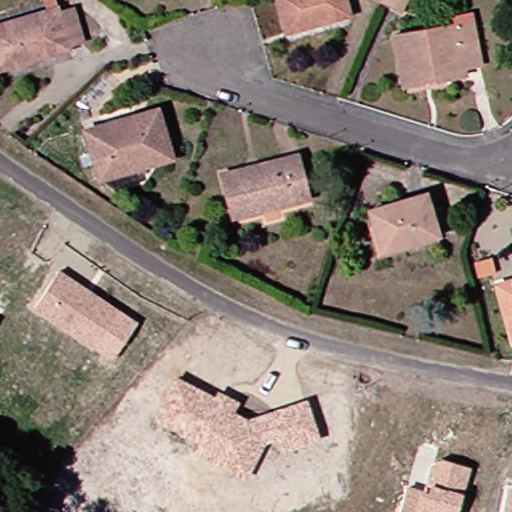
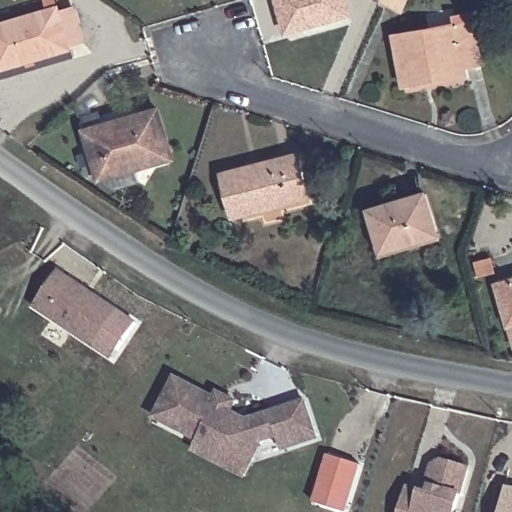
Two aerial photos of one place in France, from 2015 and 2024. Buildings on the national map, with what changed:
unchanged [(282,32),(273,0),(340,0),(344,14),(282,32)]
unchanged [(381,0),(398,0),(395,6),(381,0)]
unchanged [(0,64),(0,19),(51,6),(52,10),(68,6),(77,39),(61,43),(62,47),(0,64)]
unchanged [(417,80),(398,82),(391,30),(452,20),(452,14),(469,10),(476,60),(459,64),(461,72),(417,80)]
unchanged [(147,107),(162,154),(91,176),(77,129),(147,107)]
unchanged [(288,150),(302,194),(226,215),(214,171),(288,150)]
unchanged [(376,250),(374,242),(363,203),(417,189),(429,230),(431,235),(376,250)]
unchanged [(114,356),(99,346),(39,305),(62,270),(122,311),(137,321),(114,356)]
unchanged [(493,287),(512,281),(512,343),(511,343),(493,287)]
unchanged [(214,394),(218,388),(241,400),(234,413),(247,419),(307,398),(322,438),(280,453),(276,441),(264,444),(247,480),(193,454),(199,442),(153,420),(175,374),(214,394)]
new [(362,463),(346,512),(344,512),(315,501),(328,455),(362,463)]
unchanged [(407,505),(411,489),(430,495),(437,466),(447,461),(471,467),(459,512),(405,512),(407,505)]
unchanged [(512,512),(500,512),(506,485),(512,486),(512,512)]

